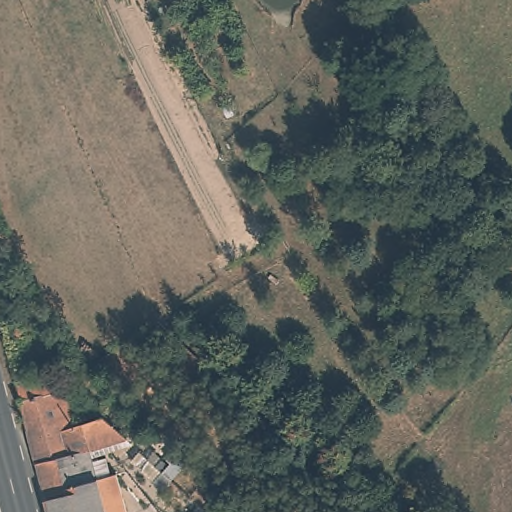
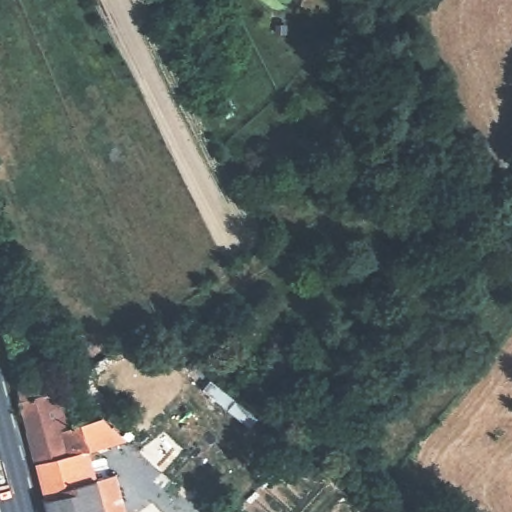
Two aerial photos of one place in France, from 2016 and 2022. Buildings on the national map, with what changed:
unchanged [(17,334),(7,337),(5,327),(13,324),(17,334)]
unchanged [(53,422),(27,430),(17,398),(12,382),(20,379),(33,374),(38,392),(57,387),(68,429),(56,432),(53,422)]
unchanged [(88,453),(104,512),(51,512),(41,474),(27,430),(53,422),(56,432),(68,429),(102,420),(127,444),(88,453)]

